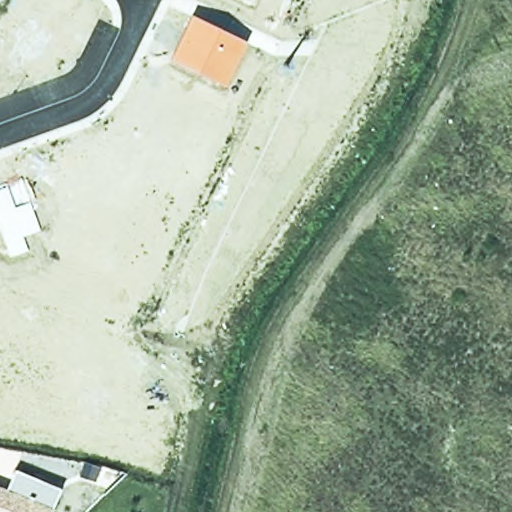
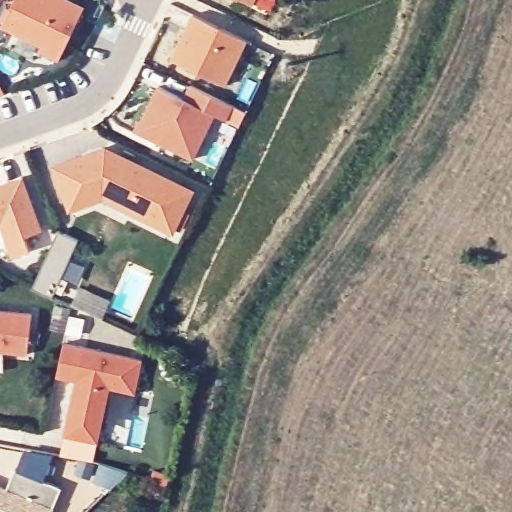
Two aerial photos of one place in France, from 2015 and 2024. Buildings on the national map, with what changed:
new [(57,60),(35,49),(38,45),(0,27),(0,24),(12,0),(72,0),(82,4),(57,60)]
new [(243,0),(273,0),(269,9),(252,0),(251,3),(243,0)]
unchanged [(171,61),(191,16),(247,43),(227,86),(171,61)]
new [(130,131),(136,119),(138,121),(154,86),(182,97),(187,85),(231,105),(245,111),(237,126),(225,119),(212,114),(192,158),(130,131)]
new [(192,189),(171,235),(100,199),(67,211),(50,166),(103,146),(192,189)]
new [(27,249),(7,256),(0,233),(0,183),(21,176),(40,230),(22,236),(27,249)]
new [(51,296),(31,285),(56,230),(77,241),(51,296)]
new [(25,354),(0,352),(0,309),(30,312),(25,354)]
new [(107,388),(97,443),(62,436),(72,381),(54,377),(60,341),(140,357),(133,394),(107,388)]
unchanged [(12,468),(62,487),(51,512),(0,512),(0,487),(6,489),(12,468)]

